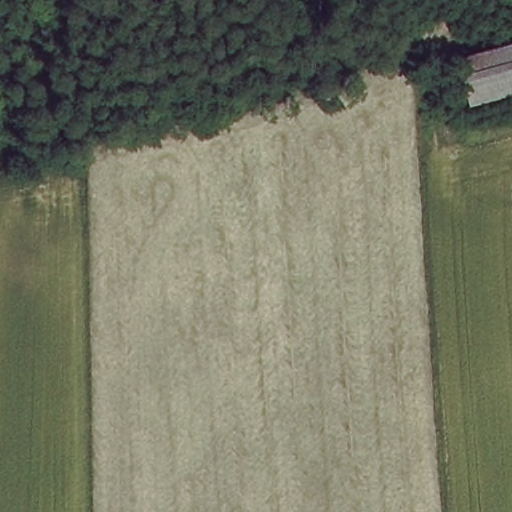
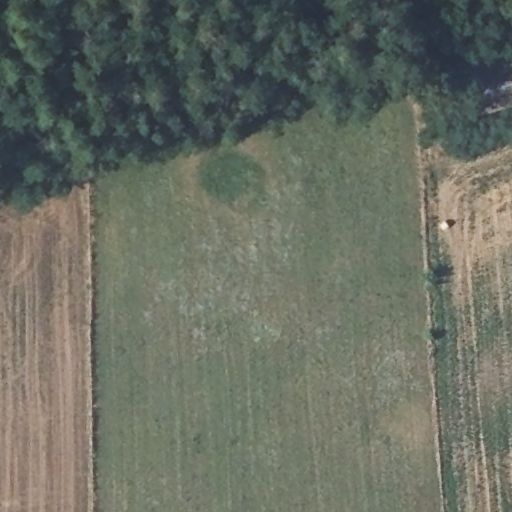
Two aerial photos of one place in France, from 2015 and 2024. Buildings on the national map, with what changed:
unchanged [(481,100),(469,103),(459,58),(477,52),(512,43),(512,92),(481,100)]

